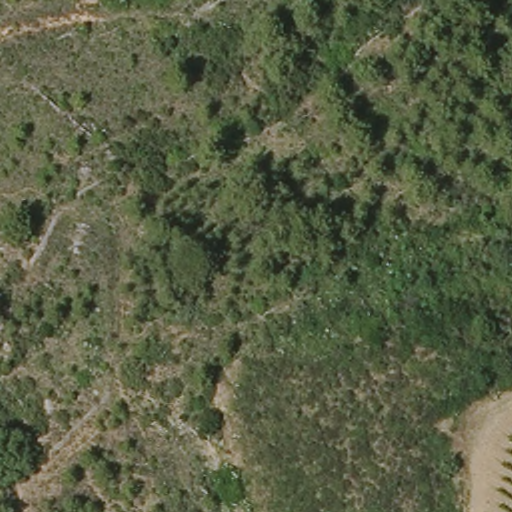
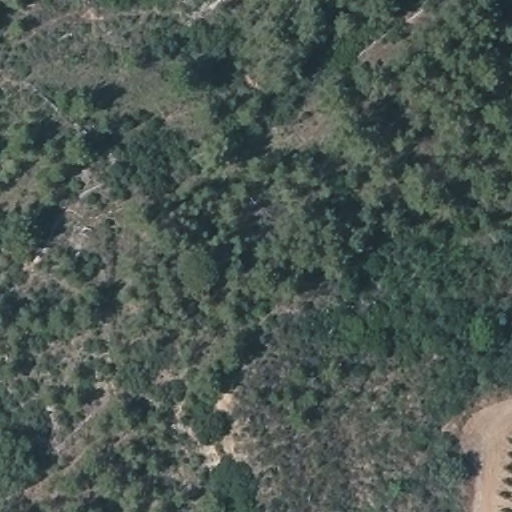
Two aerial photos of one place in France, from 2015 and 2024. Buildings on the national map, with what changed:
[]

